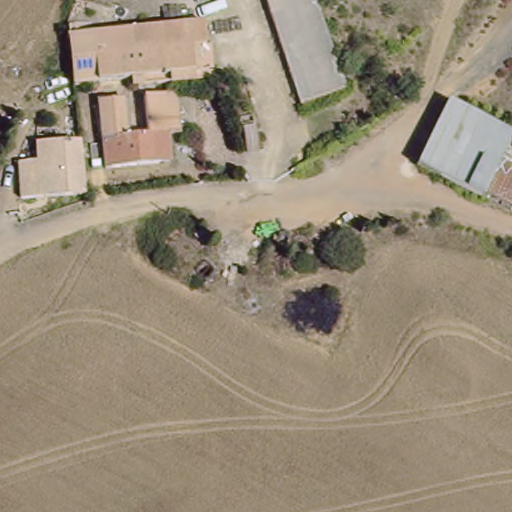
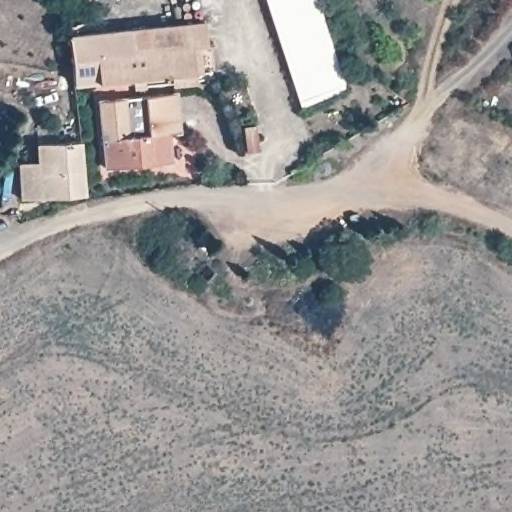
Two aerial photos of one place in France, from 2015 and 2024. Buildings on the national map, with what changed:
unchanged [(298,110),(262,0),(319,0),(348,93),(298,110)]
unchanged [(75,88),(65,34),(115,29),(208,20),(214,75),(194,77),(194,85),(170,85),(171,78),(105,85),(75,88)]
unchanged [(165,135),(147,136),(142,97),(169,95),(174,134),(165,135)]
unchanged [(97,99),(96,96),(121,100),(126,139),(147,136),(165,135),(169,166),(109,173),(103,135),(97,99)]
demolished [(436,160),(420,153),(420,152),(445,100),(473,114),(436,160)]
demolished [(453,167),(436,160),(473,114),(486,120),(478,141),(453,167)]
demolished [(501,158),(490,185),(453,167),(478,141),(486,120),(512,132),(501,158)]
demolished [(501,158),(512,132),(512,163),(501,158)]
unchanged [(48,192),(25,193),(24,157),(41,156),(40,139),(83,136),(85,166),(48,170),(48,192)]

